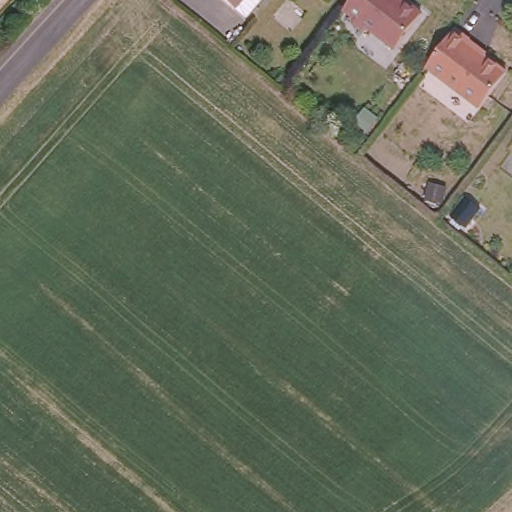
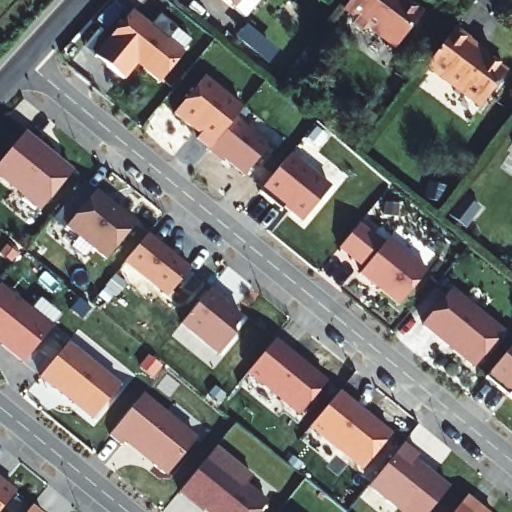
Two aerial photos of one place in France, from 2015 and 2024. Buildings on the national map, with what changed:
unchanged [(231,0),(243,0),(238,6),(231,0)]
unchanged [(394,45),(369,25),(361,26),(352,19),(351,12),(342,5),(346,0),(406,0),(420,11),(394,45)]
new [(136,64),(123,79),(95,54),(131,9),(182,53),(158,83),(136,64)]
unchanged [(467,40),(505,70),(478,104),(424,63),(454,24),(469,36),(467,40)]
new [(208,146),(196,135),(198,132),(173,110),(203,74),(241,106),(208,146)]
new [(267,144),(243,173),(223,155),(221,158),(208,147),(233,116),(267,144)]
new [(39,209),(0,177),(0,162),(25,134),(69,172),(39,209)]
new [(306,221),(276,199),(274,203),(261,191),(289,155),(329,189),(306,221)]
new [(66,228),(94,190),(135,224),(106,262),(66,228)]
unchanged [(475,205),(461,224),(444,211),(458,193),(475,205)]
new [(399,305),(360,274),(363,269),(339,248),(359,224),(383,243),(387,239),(426,271),(399,305)]
new [(189,267),(168,295),(125,262),(148,234),(189,267)]
new [(50,327),(22,362),(0,344),(0,284),(50,327)]
new [(502,332),(474,367),(424,325),(452,288),(502,332)]
new [(241,319),(219,356),(180,324),(211,290),(241,319)]
new [(274,339),(326,382),(298,413),(249,372),(274,339)]
new [(68,344),(119,385),(93,421),(40,379),(68,344)]
new [(499,390),(486,378),(512,345),(512,394),(503,387),(499,390)]
new [(311,427),(339,392),(391,434),(362,469),(311,427)]
new [(166,473),(125,441),(122,444),(110,436),(143,394),(194,438),(166,473)]
new [(400,443),(416,456),(413,459),(445,487),(424,512),(400,512),(366,484),(400,443)]
new [(203,509),(199,512),(178,493),(213,449),(249,479),(244,486),(266,504),(260,512),(206,512),(203,509)]
new [(14,489),(0,507),(0,478),(14,489)]
new [(466,497),(489,512),(453,512),(466,497)]
new [(33,507),(39,512),(28,512),(33,507)]

